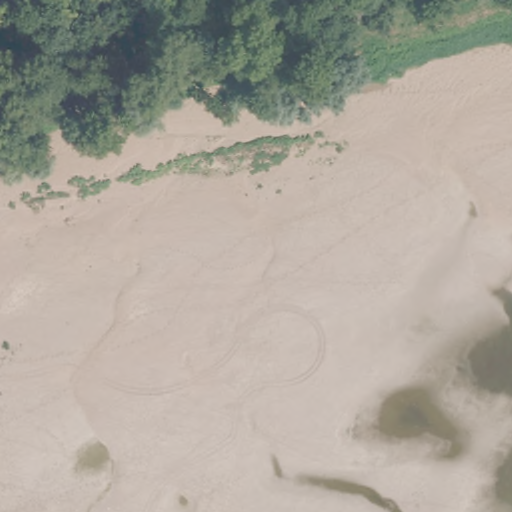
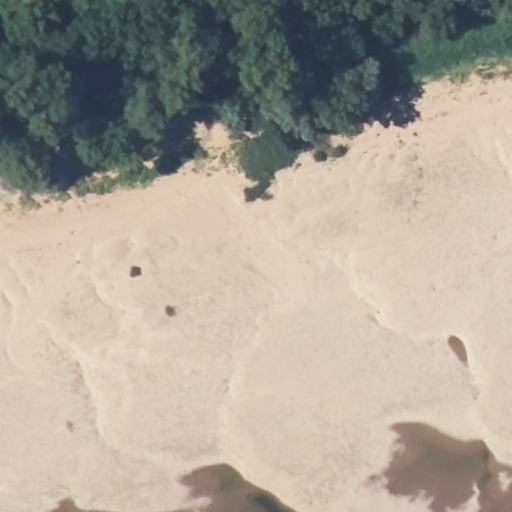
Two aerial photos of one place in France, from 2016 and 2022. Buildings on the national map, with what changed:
[]

